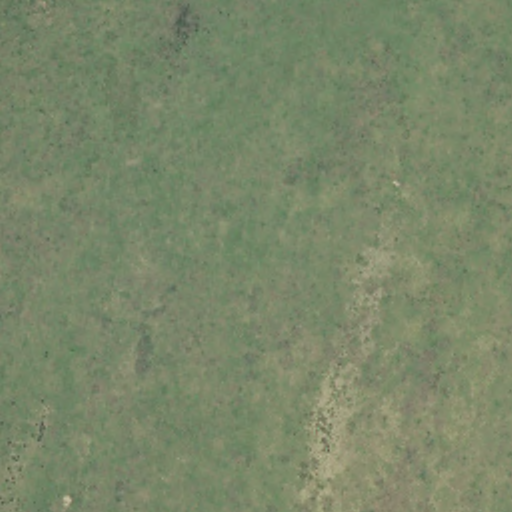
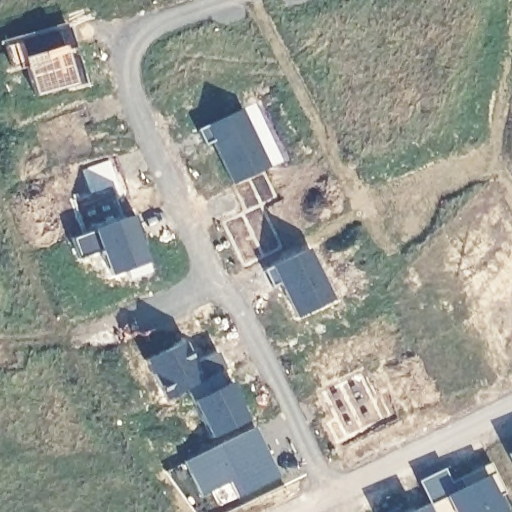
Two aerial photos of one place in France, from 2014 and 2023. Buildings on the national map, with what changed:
new [(68,48),(72,60),(77,57),(83,82),(34,96),(25,62),(11,67),(5,45),(68,27),(74,46),(68,48)]
new [(242,109),(270,167),(232,185),(212,141),(205,145),(197,130),(242,109)]
new [(142,233),(137,235),(150,271),(129,279),(126,271),(111,276),(102,250),(78,259),(71,238),(136,215),(142,233)]
new [(308,249),(333,300),(297,317),(281,283),(272,287),(263,270),(308,249)]
new [(184,342),(194,363),(217,352),(226,370),(219,373),(186,388),(165,398),(147,360),(184,342)]
new [(225,385),(232,382),(240,398),(236,400),(247,420),(211,438),(186,388),(219,373),(225,385)]
new [(278,477),(237,497),(230,481),(202,495),(185,461),(255,427),(278,477)]
new [(508,453),(512,452),(512,462),(508,453)]
new [(496,497),(503,512),(432,512),(427,503),(417,481),(444,468),(450,481),(490,462),(505,493),(496,497)]
new [(427,503),(432,512),(410,512),(427,503)]
new [(397,508),(399,512),(388,512),(397,508)]

